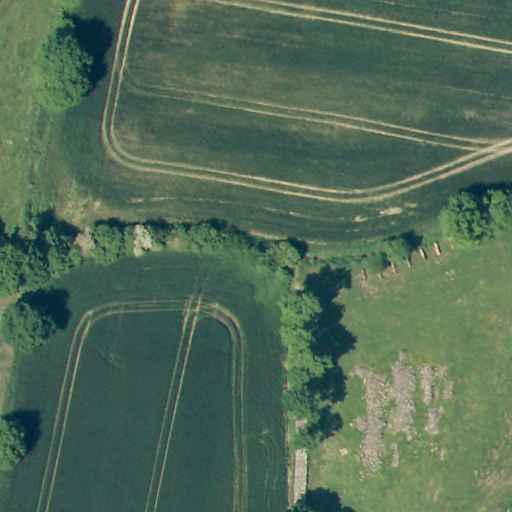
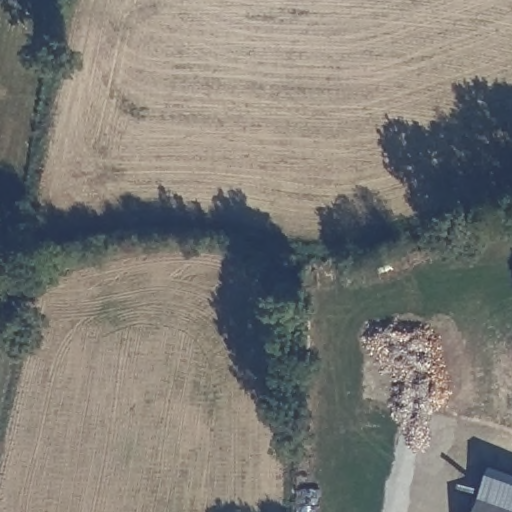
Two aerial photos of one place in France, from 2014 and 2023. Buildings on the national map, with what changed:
new [(512,474),(512,512),(472,512),(489,466),(512,474)]
demolished [(512,510),(512,512),(502,512),(504,507),(512,510)]

